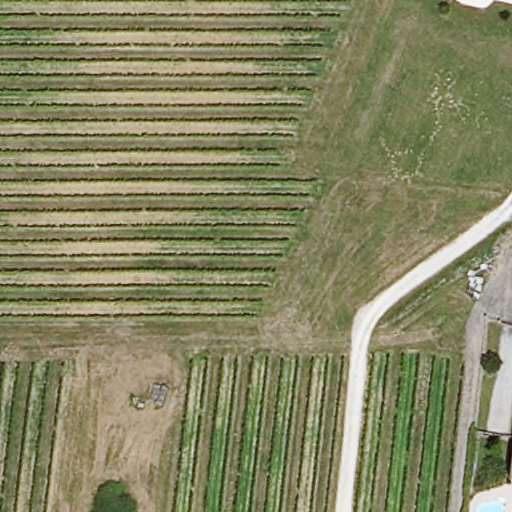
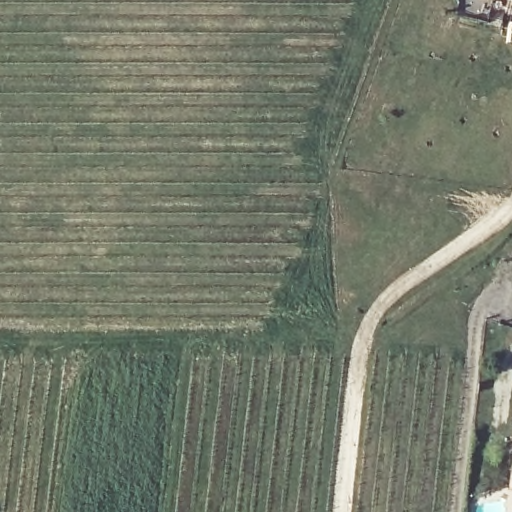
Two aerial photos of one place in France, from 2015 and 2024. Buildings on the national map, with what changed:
unchanged [(510,481),(512,467),(512,481),(510,481)]

